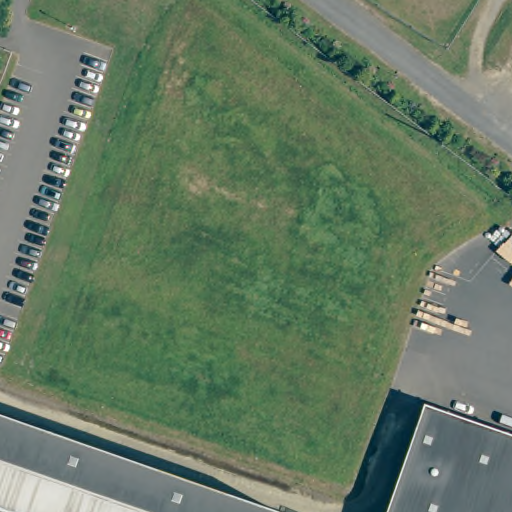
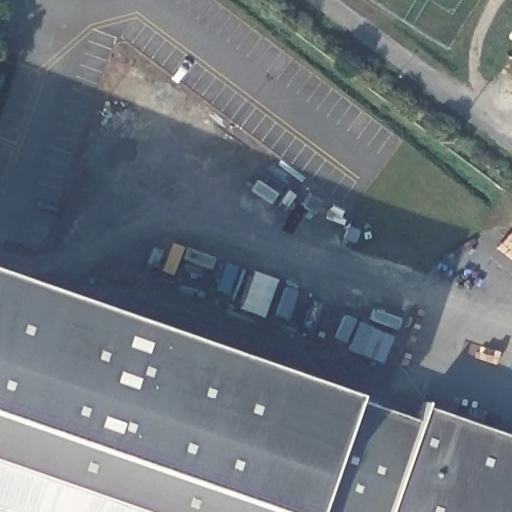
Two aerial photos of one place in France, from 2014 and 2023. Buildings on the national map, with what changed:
new [(247,512),(0,426),(0,277),(342,397),(420,425),(390,512),(247,512)]
unchanged [(512,443),(512,512),(390,512),(423,415),(512,443)]
unchanged [(0,512),(0,426),(247,512),(0,512)]

